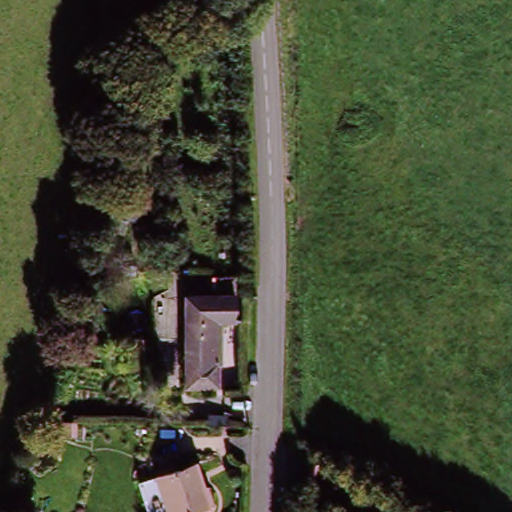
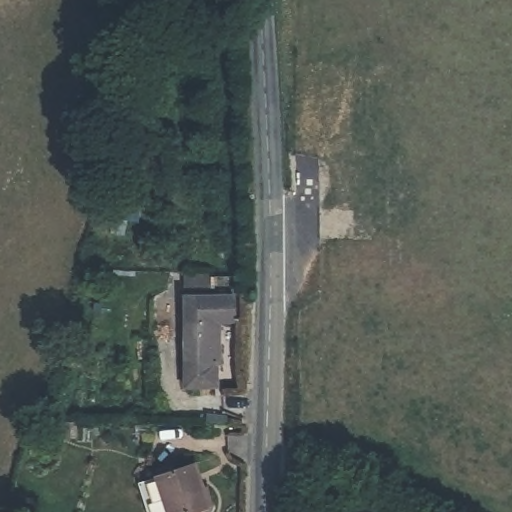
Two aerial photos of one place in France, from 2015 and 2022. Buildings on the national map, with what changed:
unchanged [(235,297),(235,323),(212,324),(212,359),(222,360),(222,389),(180,389),(186,295),(235,297)]
unchanged [(208,512),(207,512),(161,512),(148,481),(195,469),(208,512)]

